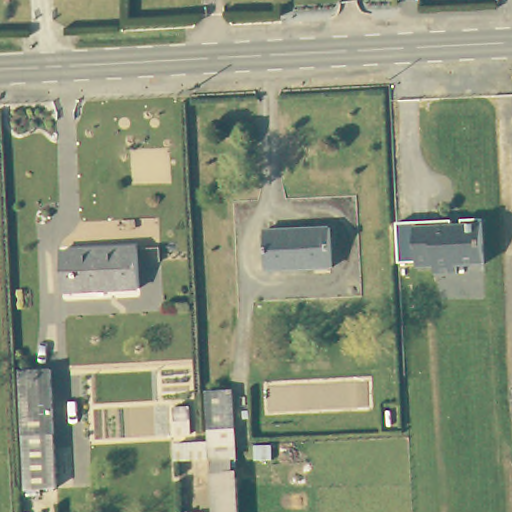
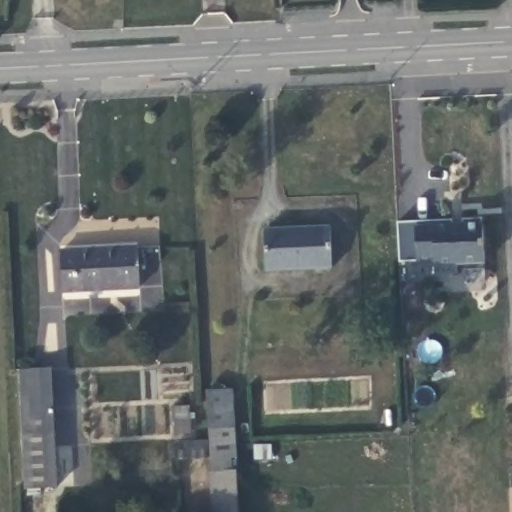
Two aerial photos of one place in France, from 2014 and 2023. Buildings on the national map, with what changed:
unchanged [(489,263),(461,264),(462,272),(439,273),(439,266),(421,267),(421,262),(404,263),(401,223),(456,220),(456,225),(466,224),(466,219),(486,218),(489,263)]
unchanged [(332,269),(266,269),(266,231),(331,230),(332,269)]
unchanged [(140,288),(64,291),(61,252),(137,249),(140,288)]
unchanged [(58,486),(27,487),(20,367),(50,366),(58,486)]
unchanged [(178,442),(209,440),(206,390),(232,388),(235,456),(210,457),(210,455),(178,457),(178,442)]
unchanged [(193,432),(177,432),(175,404),(191,404),(193,432)]
unchanged [(237,512),(213,512),(211,471),(235,470),(237,512)]

